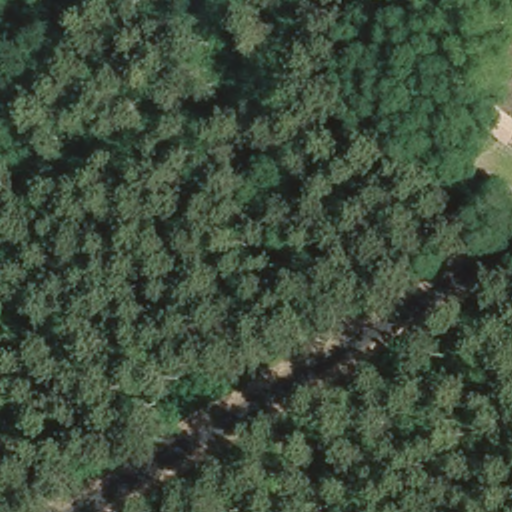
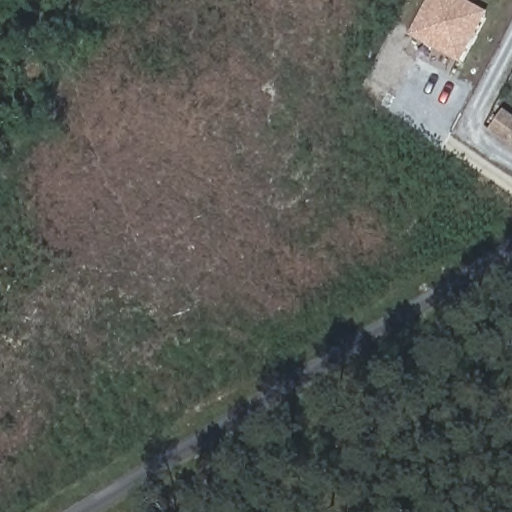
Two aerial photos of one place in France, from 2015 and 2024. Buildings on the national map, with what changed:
new [(407,35),(426,0),(464,0),(487,12),(460,63),(407,35)]
new [(488,130),(502,109),(512,115),(512,146),(488,130)]

